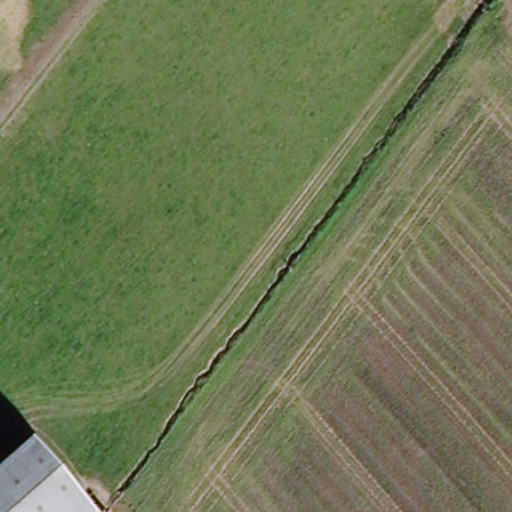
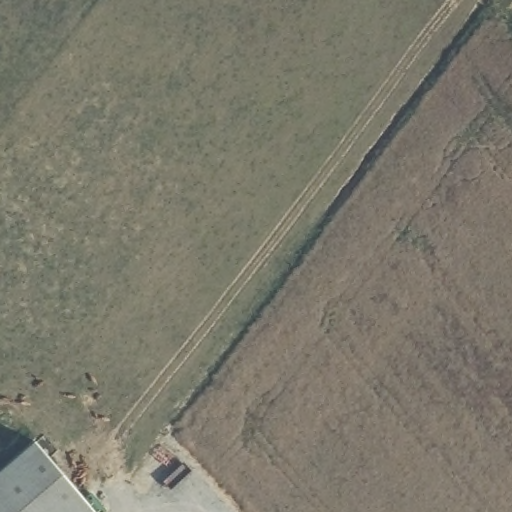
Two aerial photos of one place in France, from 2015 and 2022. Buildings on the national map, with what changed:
unchanged [(93,512),(0,512),(0,469),(34,440),(93,512)]

